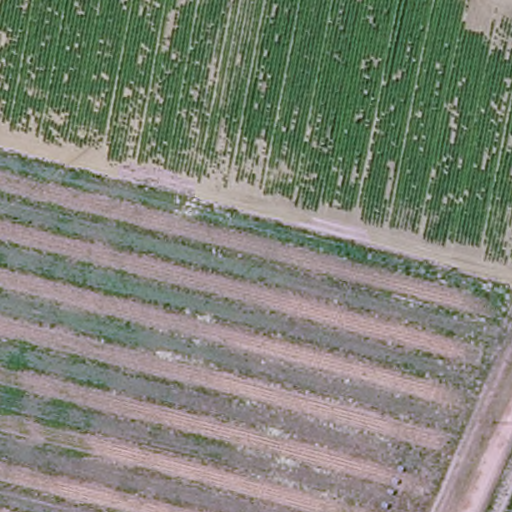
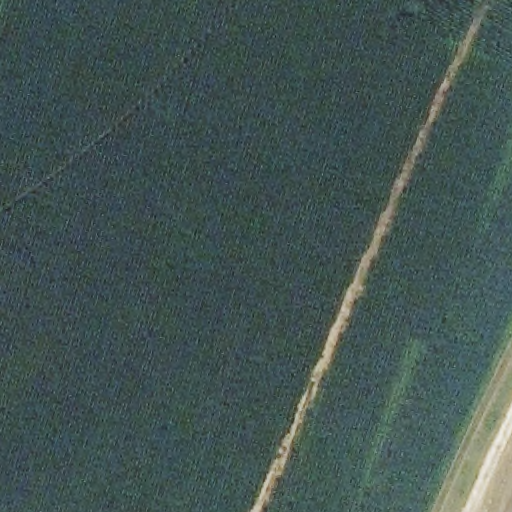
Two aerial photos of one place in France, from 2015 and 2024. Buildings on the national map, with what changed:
[]

